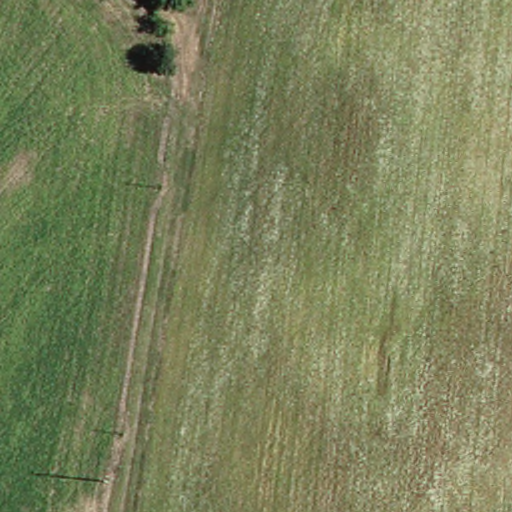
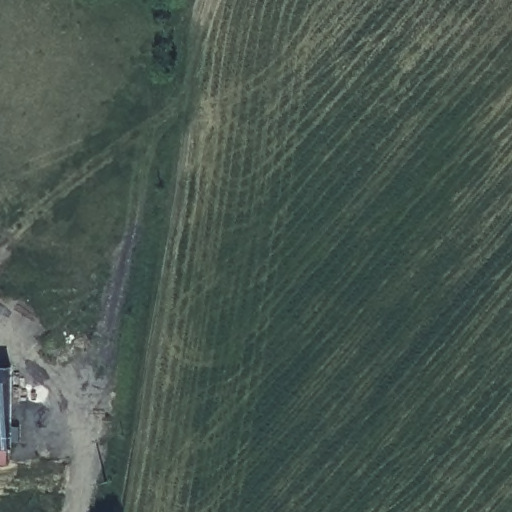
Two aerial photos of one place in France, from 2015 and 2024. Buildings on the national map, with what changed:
new [(0,452),(0,369),(12,369),(10,452),(0,452)]

